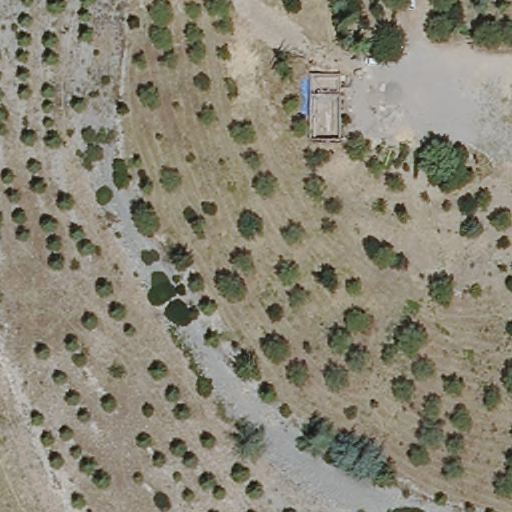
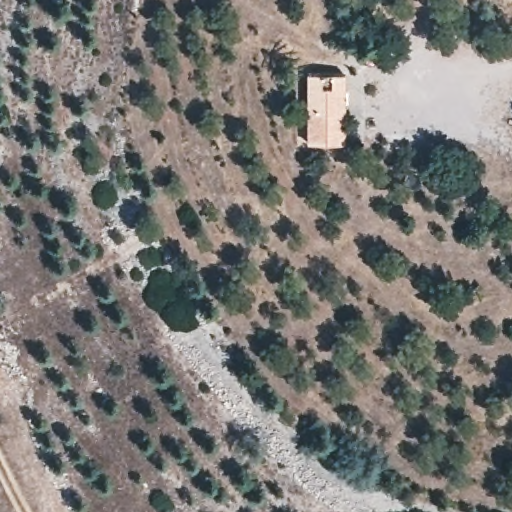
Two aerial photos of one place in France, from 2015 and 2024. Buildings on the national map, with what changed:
new [(344,72),(345,142),(307,141),(307,72),(344,72)]

